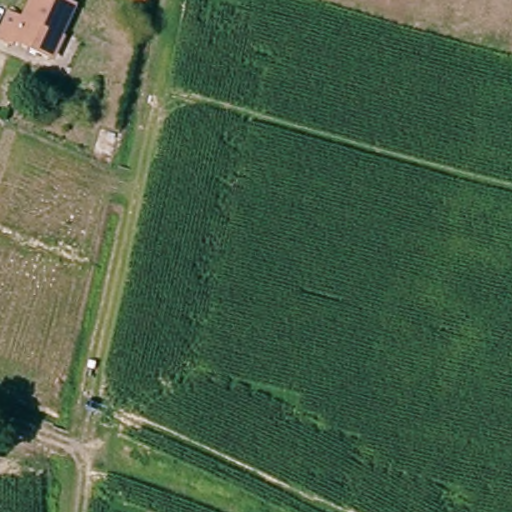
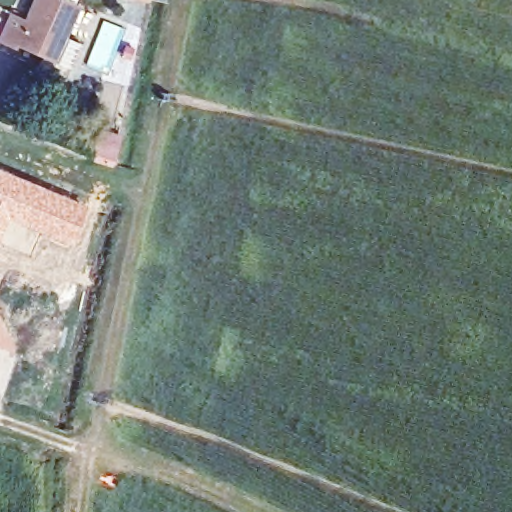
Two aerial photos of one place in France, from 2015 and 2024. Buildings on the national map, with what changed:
unchanged [(11,14),(27,19),(34,0),(67,0),(77,4),(66,35),(60,33),(52,55),(17,44),(15,48),(1,43),(11,14)]
new [(142,0),(147,0),(147,1),(142,0)]
new [(93,125),(125,134),(117,164),(86,154),(93,125)]
new [(68,244),(7,218),(0,233),(0,168),(86,203),(68,244)]

